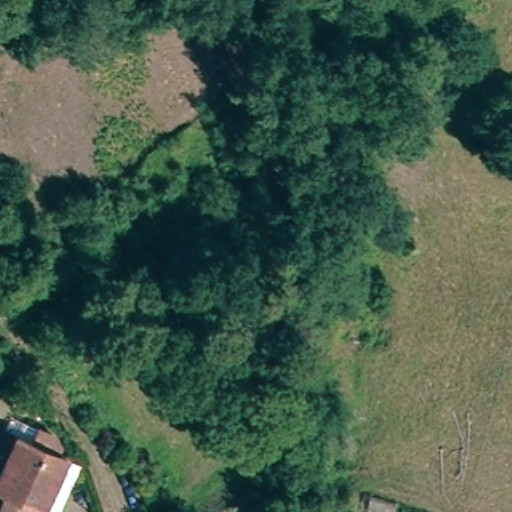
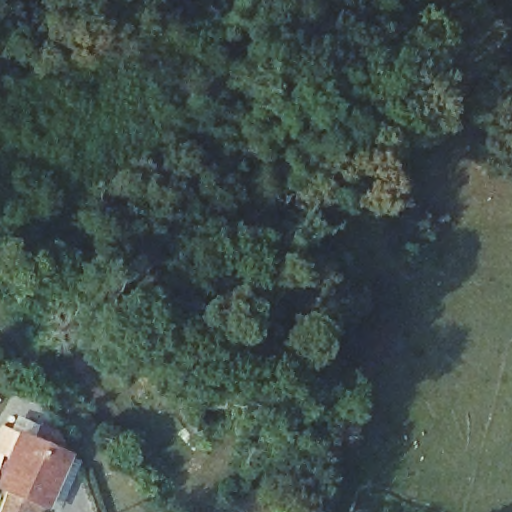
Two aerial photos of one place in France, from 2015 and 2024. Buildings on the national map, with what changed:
unchanged [(23,423),(52,434),(49,444),(57,446),(32,512),(0,512),(0,424),(20,432),(23,423)]

